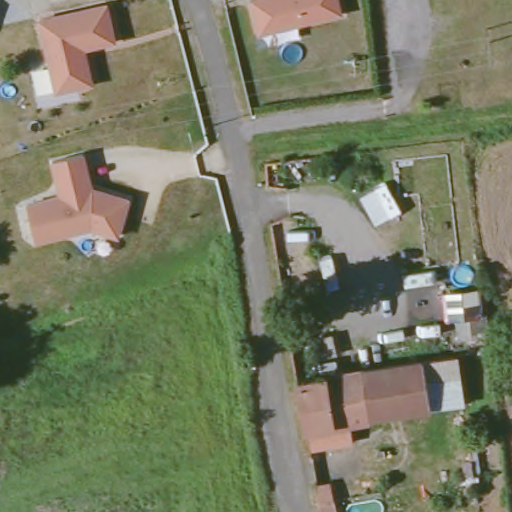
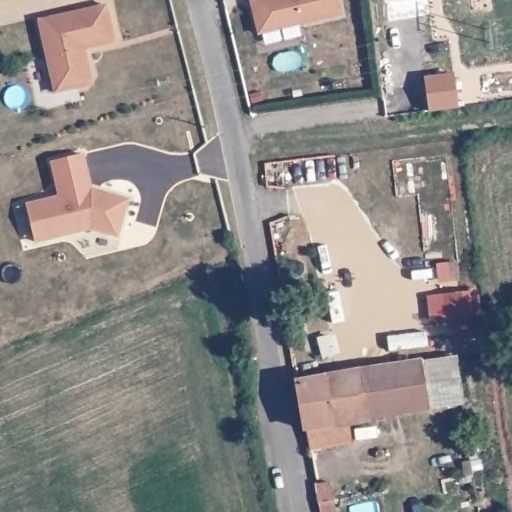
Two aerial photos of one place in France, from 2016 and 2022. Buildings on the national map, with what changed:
unchanged [(259,34),(251,0),(338,0),(341,13),(259,34)]
unchanged [(89,81),(85,86),(53,94),(37,21),(105,7),(113,43),(82,50),(83,58),(89,81)]
new [(451,74),(456,107),(426,111),(422,78),(451,74)]
unchanged [(118,237),(91,229),(36,242),(27,206),(60,197),(52,161),(82,154),(91,190),(92,190),(99,192),(128,201),(118,237)]
unchanged [(460,356),(466,403),(426,408),(420,357),(460,356)]
unchanged [(330,425),(299,432),(288,378),(323,370),(420,357),(426,408),(330,425)]

